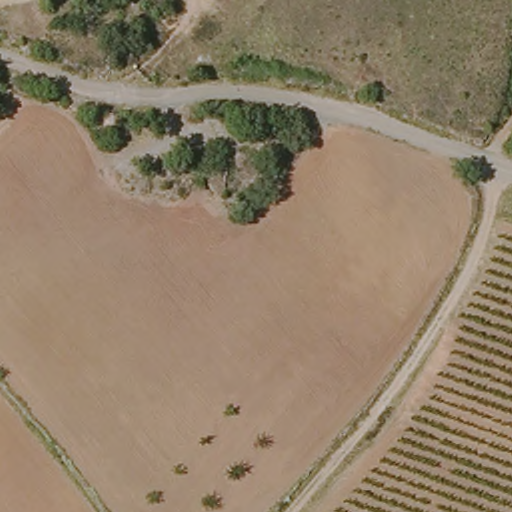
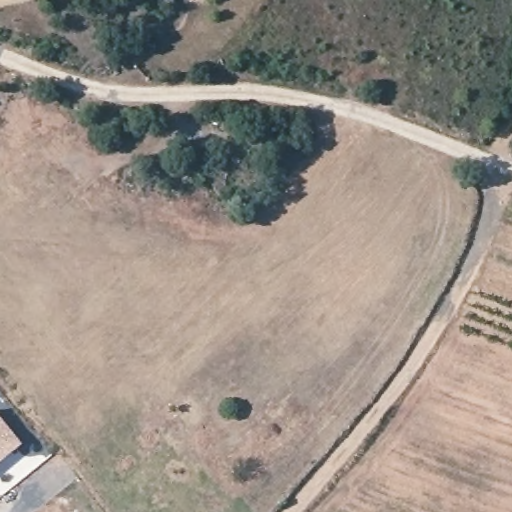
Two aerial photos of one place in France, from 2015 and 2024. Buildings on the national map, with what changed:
new [(0,462),(0,418),(22,445),(0,462)]

